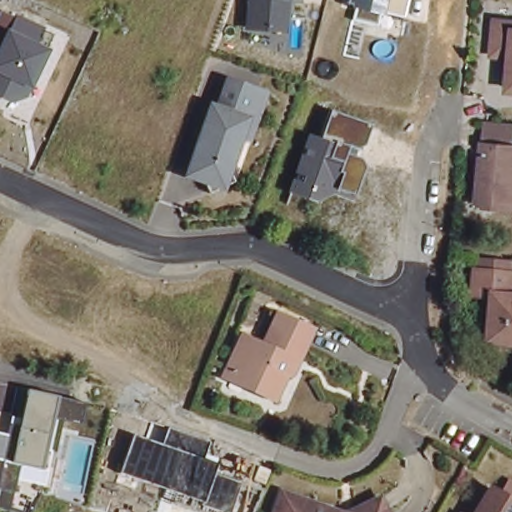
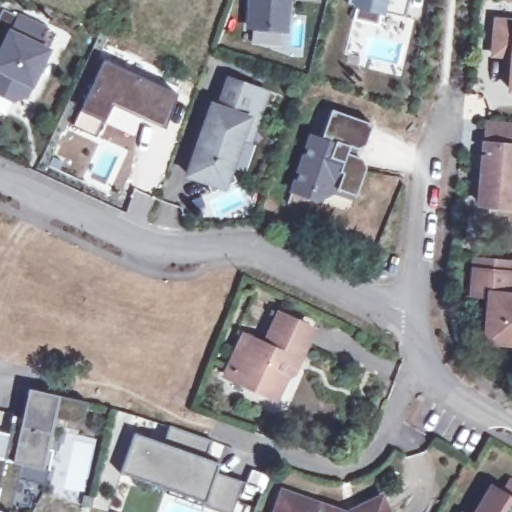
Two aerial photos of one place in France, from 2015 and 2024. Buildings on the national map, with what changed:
unchanged [(288,34),(245,32),(247,0),(290,0),(288,34)]
unchanged [(383,13),(380,27),(352,21),(355,9),(346,6),(348,0),(410,0),(405,18),(383,13)]
unchanged [(27,99),(12,103),(0,97),(0,11),(55,34),(50,50),(27,99)]
unchanged [(512,21),(512,88),(510,88),(512,55),(492,54),(495,19),(512,21)]
new [(177,94),(167,124),(114,99),(97,135),(73,125),(103,60),(177,94)]
unchanged [(215,109),(224,80),(260,90),(250,120),(244,141),(235,139),(227,168),(233,180),(209,194),(202,181),(185,176),(197,140),(200,127),(207,106),(215,109)]
unchanged [(371,123),(363,145),(353,149),(348,147),(345,154),(358,158),(363,167),(352,197),(335,190),(316,199),(292,192),(308,141),(320,143),(330,110),(371,123)]
unchanged [(475,210),(482,124),(511,127),(510,146),(507,148),(510,152),(512,152),(512,213),(475,210)]
unchanged [(490,347),(494,299),(477,298),(480,274),(480,261),(512,264),(512,348),(490,347)]
unchanged [(270,397),(225,377),(242,337),(263,346),(277,314),(311,329),(290,376),(285,377),(275,399),(270,397)]
unchanged [(87,403),(83,426),(53,420),(42,469),(20,464),(10,511),(0,508),(0,457),(11,459),(28,389),(58,397),(87,403)]
unchanged [(231,512),(202,503),(120,474),(132,436),(164,447),(169,428),(211,443),(205,461),(217,466),(215,473),(242,482),(231,512)]
unchanged [(491,487),(512,499),(512,512),(476,512),(491,487)]
unchanged [(308,512),(272,512),(277,499),(309,509),(308,512)]
unchanged [(374,503),(378,512),(356,512),(374,503)]

